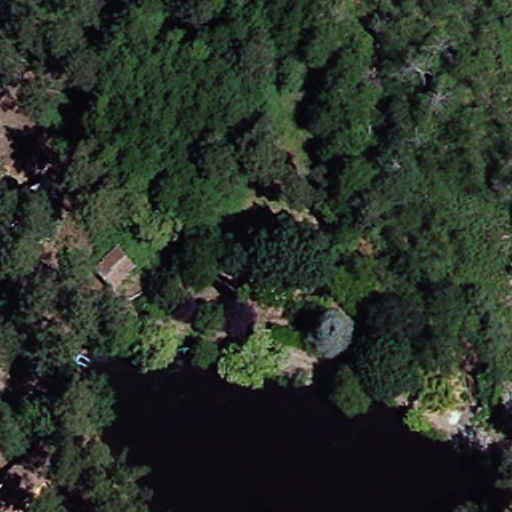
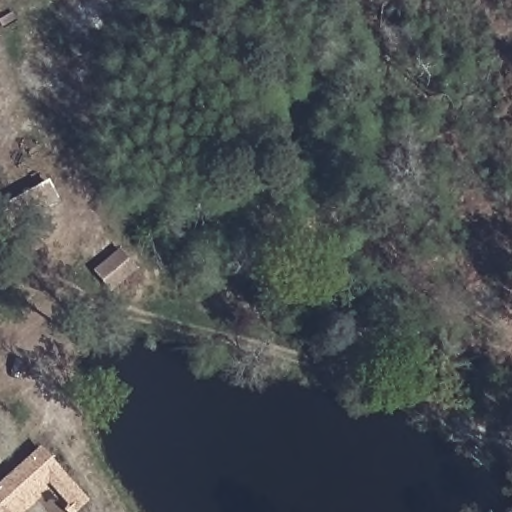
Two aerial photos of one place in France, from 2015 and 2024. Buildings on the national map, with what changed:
new [(19,512),(0,512),(0,482),(40,446),(90,501),(78,512),(73,512),(49,485),(19,512)]

